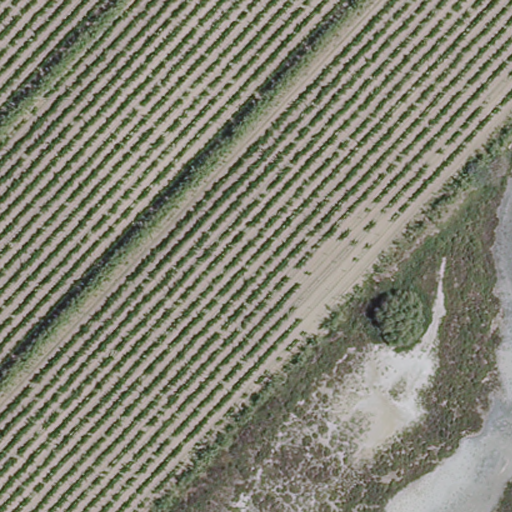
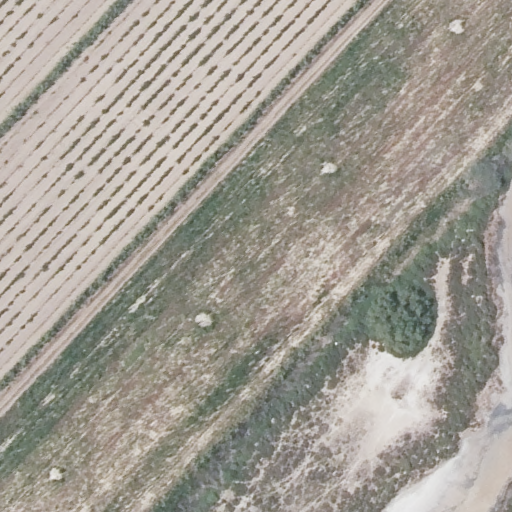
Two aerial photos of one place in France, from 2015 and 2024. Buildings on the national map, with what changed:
[]

